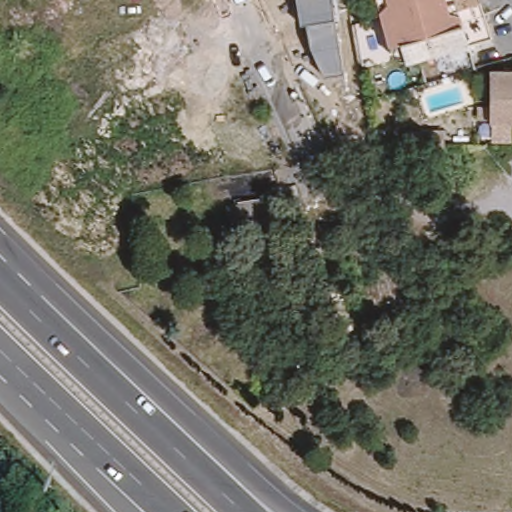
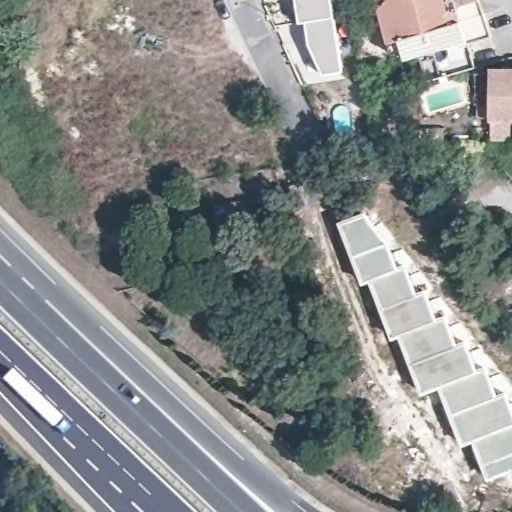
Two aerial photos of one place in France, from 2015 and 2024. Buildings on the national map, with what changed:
unchanged [(342,69),(323,74),(309,44),(305,22),(299,23),(295,0),(331,0),(334,16),(342,69)]
unchanged [(374,0),(478,0),(490,37),(467,44),(445,47),(405,59),(389,54),(386,42),(374,0)]
unchanged [(512,70),(512,120),(494,120),(495,69),(512,70)]
new [(365,212),(387,244),(399,268),(370,280),(362,283),(339,222),(365,212)]
new [(399,268),(407,265),(416,283),(422,281),(439,317),(399,335),(392,337),(370,280),(399,268)]
new [(439,317),(446,315),(458,342),(465,340),(478,369),(439,386),(422,392),(399,335),(439,317)]
new [(478,369),(486,366),(499,394),(506,391),(512,406),(512,477),(509,471),(487,478),(472,440),(462,445),(439,386),(478,369)]

